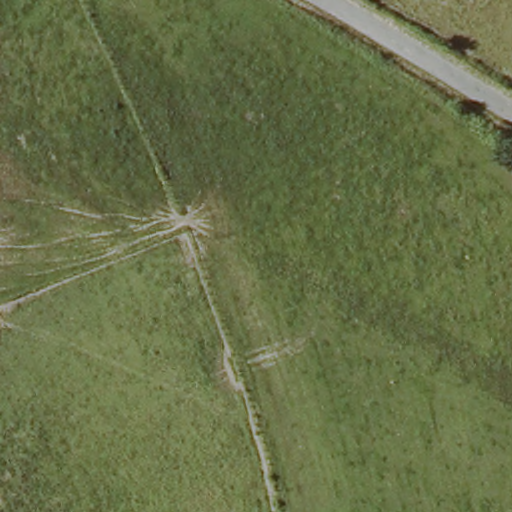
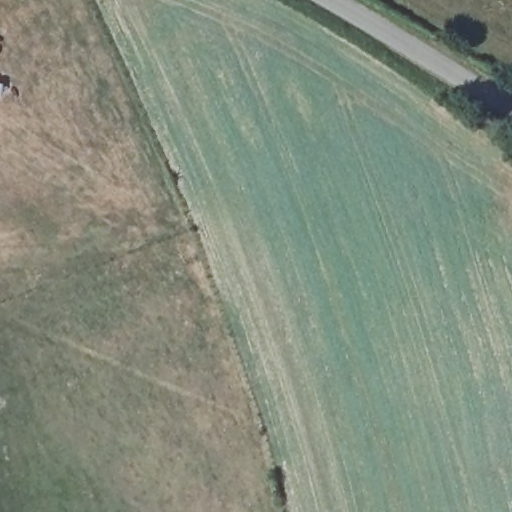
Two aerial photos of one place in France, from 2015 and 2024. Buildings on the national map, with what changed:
[]

